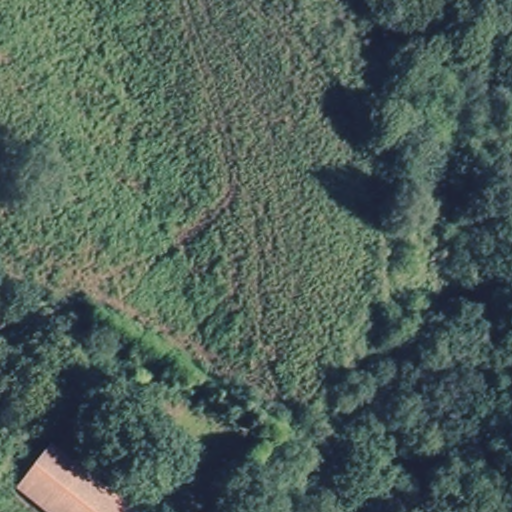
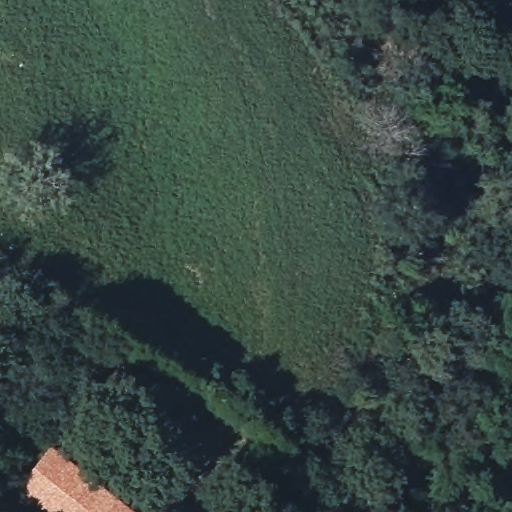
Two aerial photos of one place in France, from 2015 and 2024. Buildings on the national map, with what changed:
unchanged [(43,512),(18,491),(49,449),(126,512),(43,512)]

